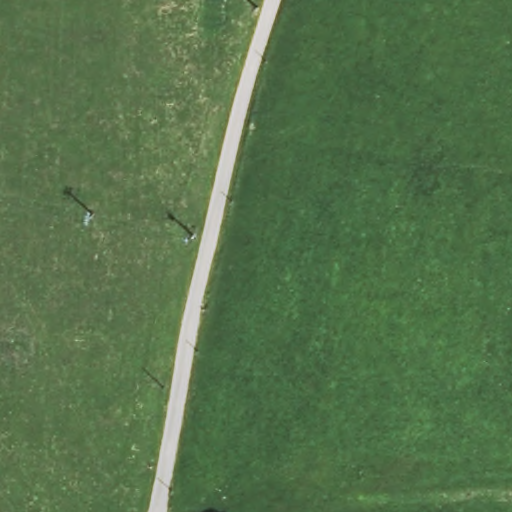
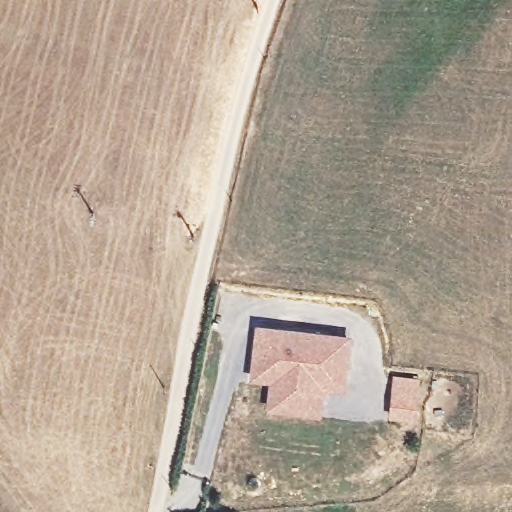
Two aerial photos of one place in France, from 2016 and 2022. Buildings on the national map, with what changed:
new [(351,337),(344,392),(324,389),(322,418),(266,409),(271,383),(250,380),(256,326),(351,337)]
new [(420,379),(415,420),(389,417),(392,376),(420,379)]

